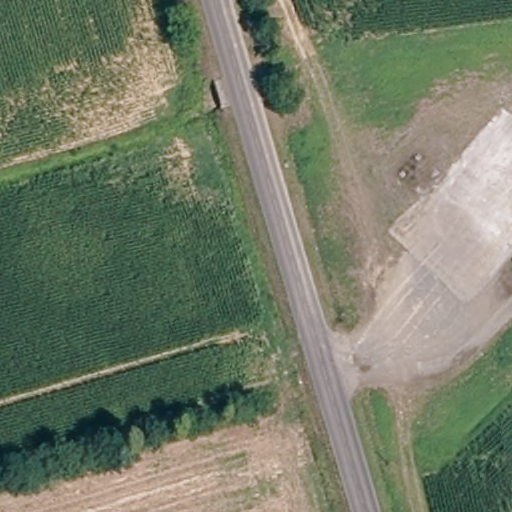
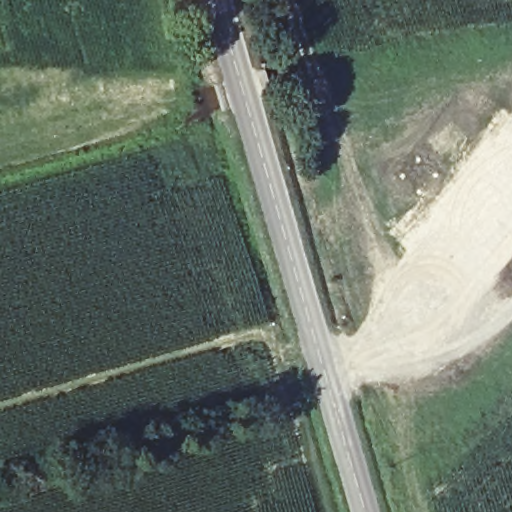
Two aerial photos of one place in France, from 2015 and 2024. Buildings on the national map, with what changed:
[]

